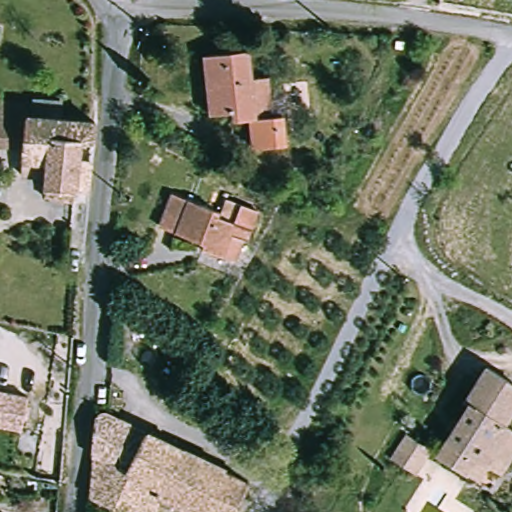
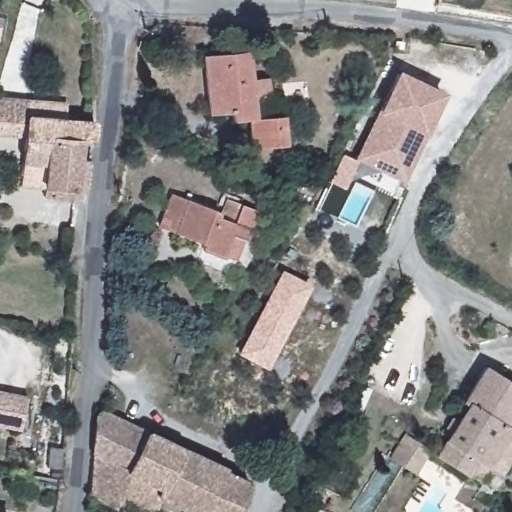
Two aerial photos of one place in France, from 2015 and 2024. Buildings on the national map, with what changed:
unchanged [(253,116),(236,119),(234,106),(212,110),(204,53),(249,47),(253,76),(266,74),(271,112),(278,111),(281,132),(256,136),(253,116)]
new [(356,160),(378,112),(398,70),(446,92),(425,135),(403,181),(356,160)]
unchanged [(82,192),(81,201),(50,198),(52,179),(26,177),(30,147),(0,144),(0,107),(1,97),(42,101),(69,104),(68,119),(99,122),(97,140),(88,139),(86,157),(96,158),(94,193),(82,192)]
unchanged [(170,194),(219,212),(217,217),(220,218),(228,200),(259,212),(247,241),(244,239),(234,262),(203,249),(205,245),(158,227),(170,194)]
new [(268,369),(238,354),(282,269),(312,285),(268,369)]
unchanged [(469,475),(440,457),(474,403),(470,400),(491,367),(512,380),(512,416),(506,426),(512,431),(512,459),(502,475),(490,467),(480,482),(469,475)]
new [(354,410),(365,387),(373,392),(362,414),(354,410)]
unchanged [(20,430),(0,427),(0,393),(27,397),(20,430)]
unchanged [(250,483),(241,500),(247,503),(242,512),(187,512),(160,498),(155,512),(91,512),(100,407),(250,483)]
unchanged [(410,470),(393,459),(409,433),(425,443),(437,450),(421,476),(410,470)]

